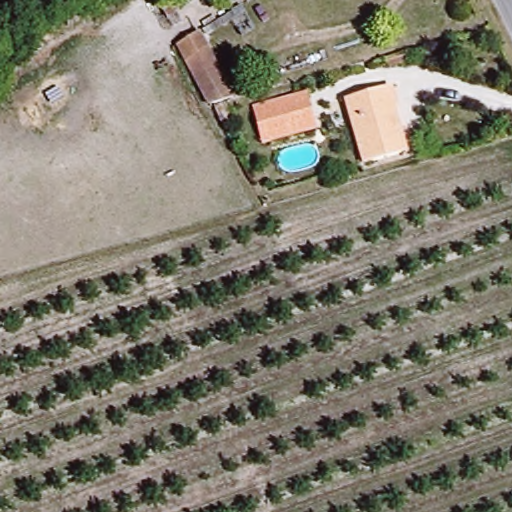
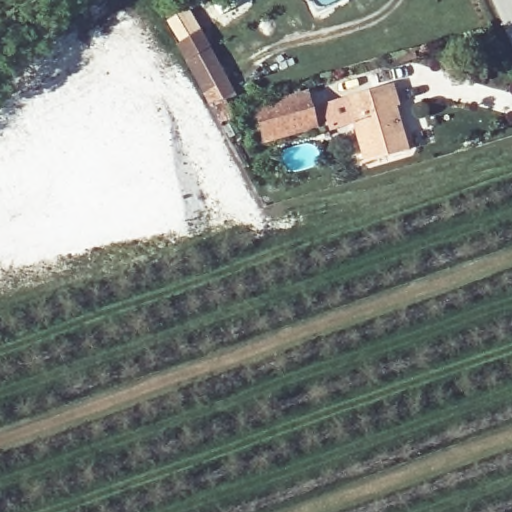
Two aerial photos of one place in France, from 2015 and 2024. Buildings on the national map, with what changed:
unchanged [(213,105),(178,41),(199,30),(235,99),(213,105)]
unchanged [(346,98),(389,86),(406,150),(363,162),(346,98)]
unchanged [(320,130),(270,143),(262,111),(312,98),(320,130)]

